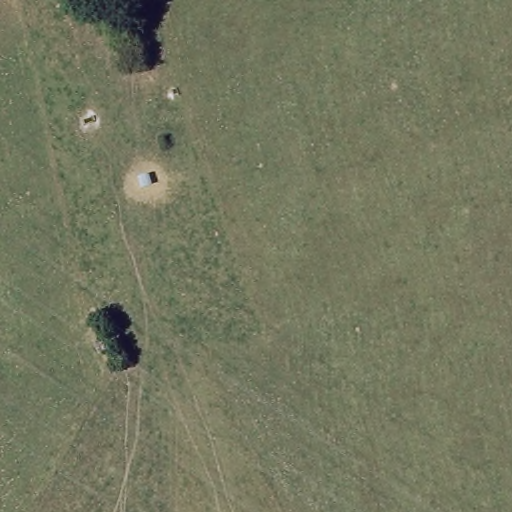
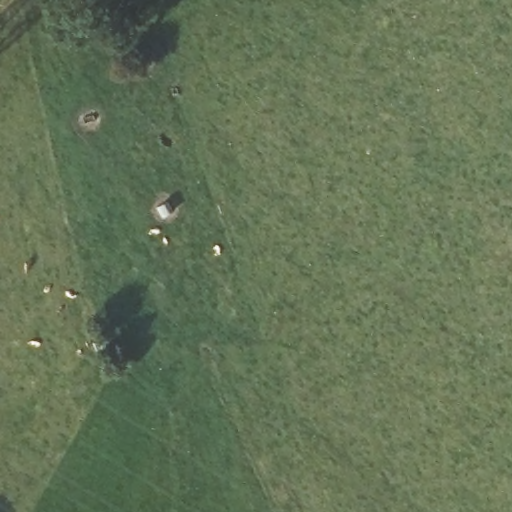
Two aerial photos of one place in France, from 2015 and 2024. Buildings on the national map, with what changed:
[]

